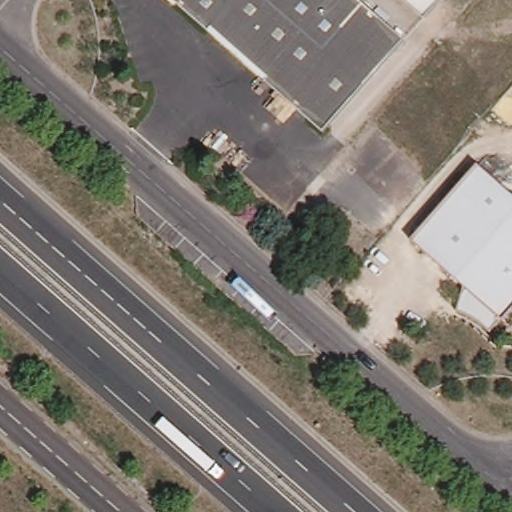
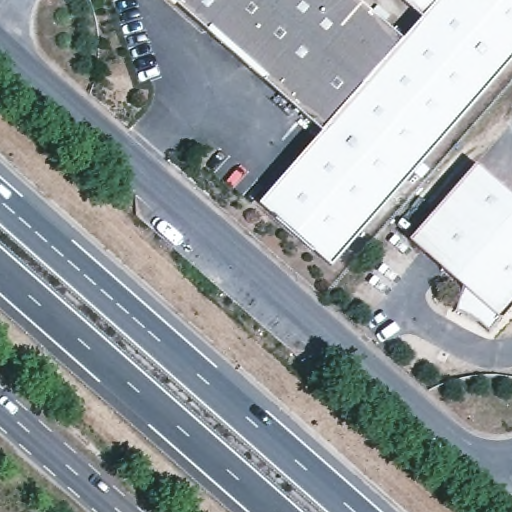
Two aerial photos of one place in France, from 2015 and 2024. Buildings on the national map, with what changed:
unchanged [(176,0),(358,0),(400,36),(323,129),(176,0)]
new [(260,204),(323,129),(400,36),(423,15),(436,0),(512,0),(512,61),(332,266),(260,204)]
unchanged [(406,0),(436,0),(423,15),(406,0)]
unchanged [(432,195),(464,155),(477,165),(512,194),(512,306),(502,318),(494,333),(457,311),(461,285),(413,240),(441,204),(432,195)]

